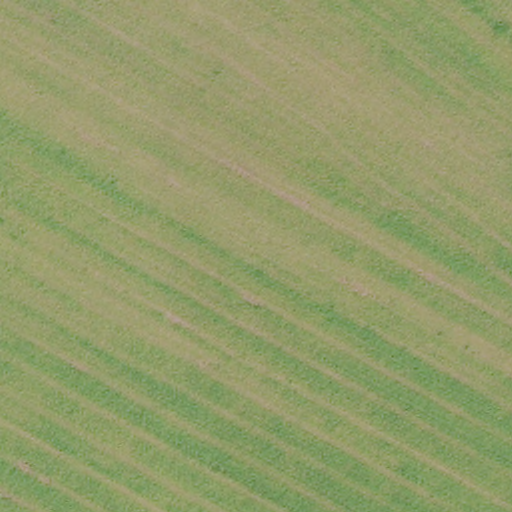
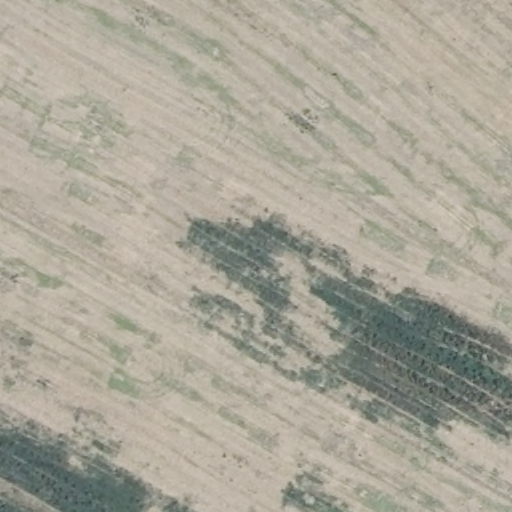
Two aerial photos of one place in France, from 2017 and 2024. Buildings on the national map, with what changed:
[]

